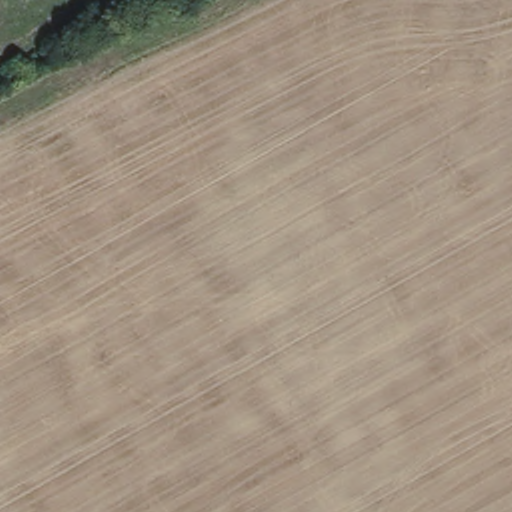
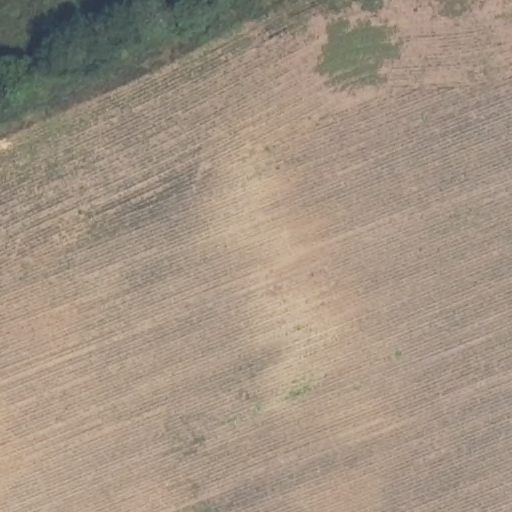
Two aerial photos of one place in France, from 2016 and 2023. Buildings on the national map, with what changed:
[]

